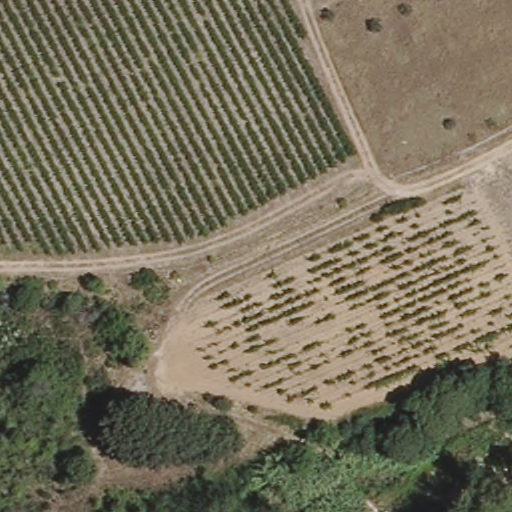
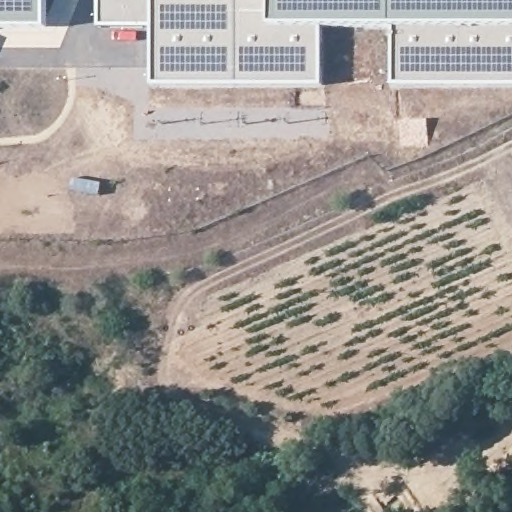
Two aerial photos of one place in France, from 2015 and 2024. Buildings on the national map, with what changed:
new [(47,26),(0,27),(0,0),(47,0),(47,26)]
new [(389,26),(318,26),(322,85),(153,84),(152,26),(99,27),(99,0),(512,0),(512,84),(393,85),(389,26)]

